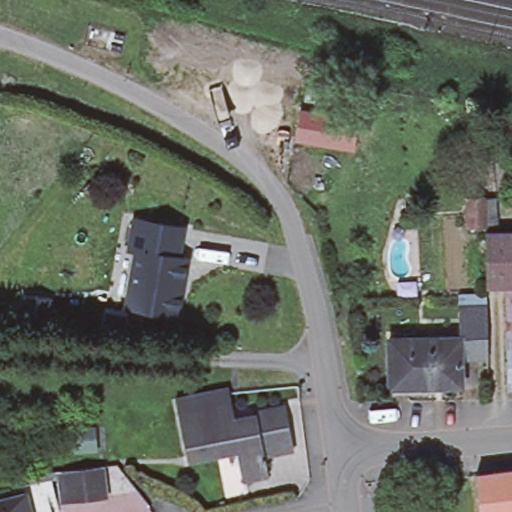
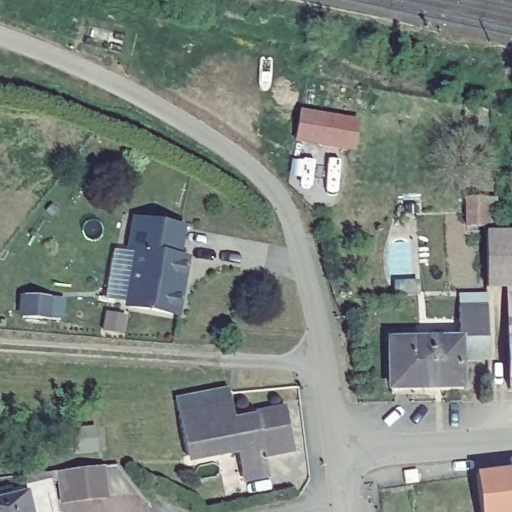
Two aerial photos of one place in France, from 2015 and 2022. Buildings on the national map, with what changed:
new [(307,114),(357,124),(352,150),(302,141),(307,114)]
unchanged [(477,230),(459,231),(457,204),(475,202),(477,230)]
unchanged [(189,226),(183,254),(194,255),(184,311),(133,301),(143,248),(135,246),(141,217),(189,226)]
unchanged [(512,291),(509,291),(482,291),(478,236),(512,236),(512,291)]
unchanged [(510,342),(509,291),(512,291),(512,392),(510,392),(510,342)]
unchanged [(52,297),(50,320),(24,318),(25,295),(52,297)]
unchanged [(483,307),(487,360),(455,361),(455,340),(455,307),(483,307)]
unchanged [(456,388),(387,390),(386,342),(455,340),(455,361),(456,388)]
unchanged [(255,418),(261,451),(265,471),(239,476),(232,443),(184,453),(176,413),(175,402),(227,392),(229,403),(232,422),(255,418)]
unchanged [(254,411),(282,406),(291,446),(261,451),(255,418),(254,411)]
unchanged [(95,455),(77,455),(75,431),(94,430),(95,455)]
unchanged [(105,467),(110,505),(73,510),(65,510),(61,472),(69,472),(105,467)]
unchanged [(512,467),(512,512),(482,512),(477,471),(512,467)]
unchanged [(27,495),(22,477),(43,475),(51,512),(0,512),(0,501),(27,495)]

